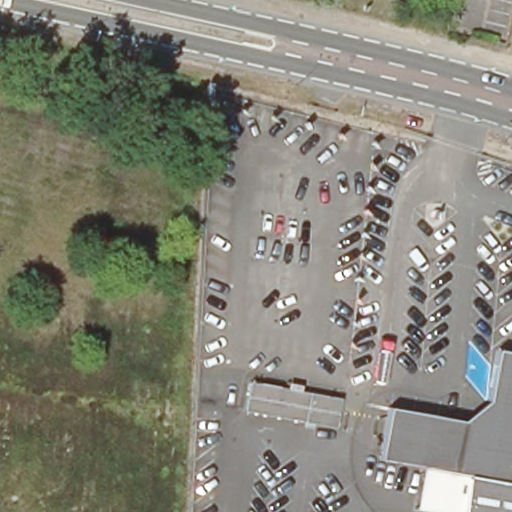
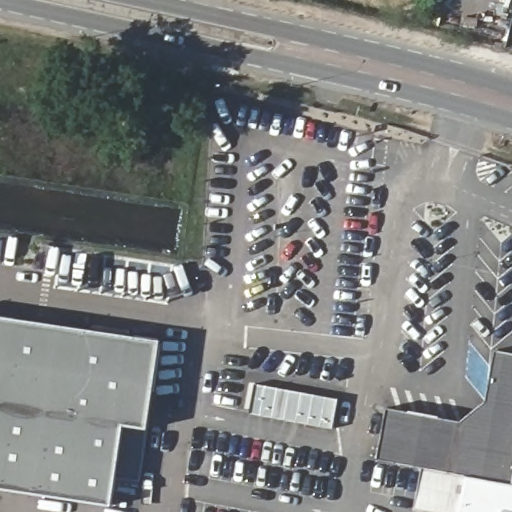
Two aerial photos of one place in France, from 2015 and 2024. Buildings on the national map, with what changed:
new [(151,424),(127,420),(115,500),(0,484),(0,311),(163,335),(151,424)]
unchanged [(410,511),(419,464),(374,457),(384,408),(460,422),(481,403),(490,349),(512,353),(512,512),(417,512),(410,511)]
new [(251,384),(342,399),(337,428),(246,413),(251,384)]
new [(143,476),(119,473),(127,420),(151,424),(143,476)]

